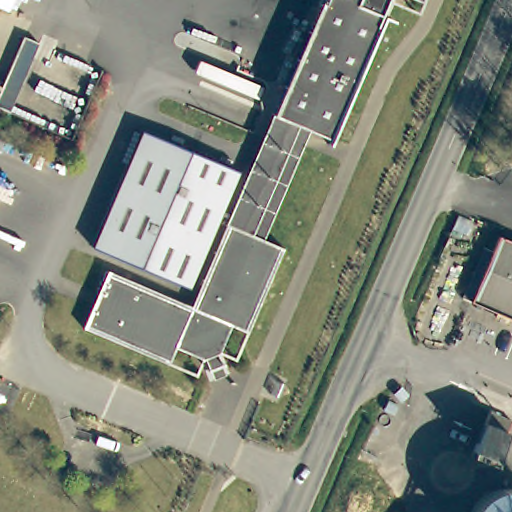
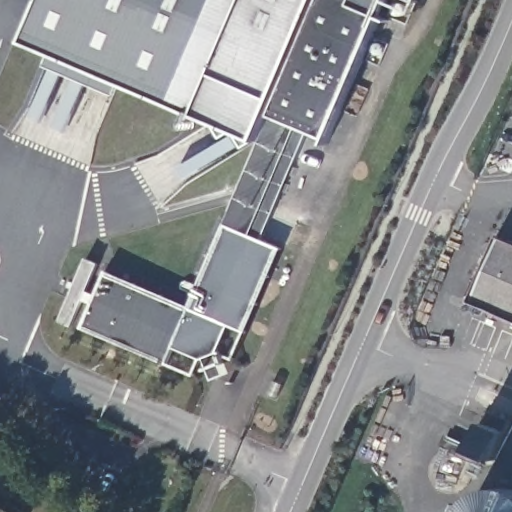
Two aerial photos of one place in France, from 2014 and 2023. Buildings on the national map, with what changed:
new [(274,121),(264,141),(124,82),(116,95),(44,66),(54,52),(29,40),(46,0),(326,0),(274,121)]
unchanged [(326,0),(391,0),(382,20),(394,26),(393,27),(384,23),(329,150),(328,149),(330,145),(318,140),(310,136),(297,131),(274,121),(326,0)]
unchanged [(422,8),(403,0),(425,0),(422,8)]
demolished [(25,41),(40,47),(30,70),(15,63),(25,41)]
unchanged [(227,229),(274,121),(297,131),(310,136),(263,245),(250,239),(227,229)]
demolished [(144,135),(239,176),(189,293),(189,294),(189,293),(94,253),(144,135)]
unchanged [(109,276),(169,302),(192,312),(202,288),(227,229),(250,239),(263,245),(280,253),(283,254),(247,338),(229,330),(220,350),(197,359),(178,351),(170,370),(93,336),(84,333),(109,276)]
unchanged [(512,246),(512,326),(496,319),(499,312),(473,301),(498,240),(512,246)]
unchanged [(501,455),(478,445),(494,406),(512,414),(512,427),(501,455)]
unchanged [(479,498),(492,490),(504,486),(512,488),(512,512),(468,512),(469,509),(479,498)]

